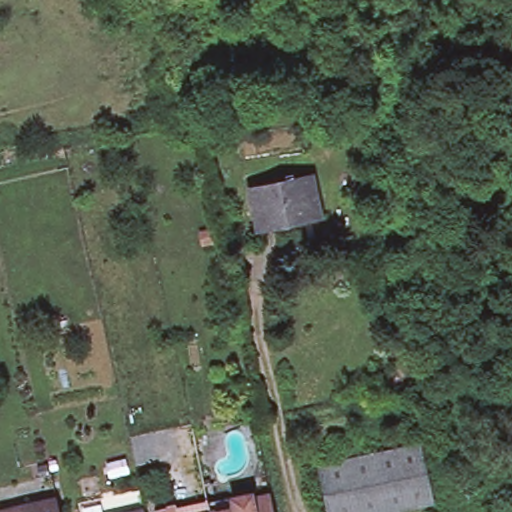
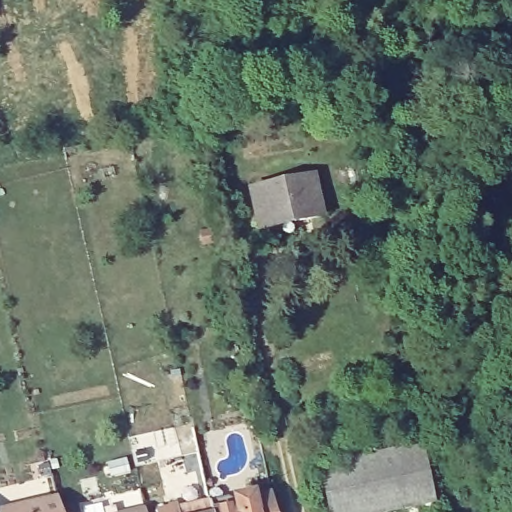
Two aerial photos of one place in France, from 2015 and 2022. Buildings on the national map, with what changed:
unchanged [(300,223),(260,232),(251,191),(248,175),(287,167),(310,163),(313,178),(322,218),(300,223)]
unchanged [(170,434),(176,457),(157,462),(152,438),(170,434)]
unchanged [(430,501),(378,512),(358,512),(345,457),(417,441),(430,501)]
unchanged [(358,512),(331,512),(320,462),(345,457),(358,512)]
unchanged [(20,503),(55,495),(59,512),(0,512),(0,508),(20,503)]
unchanged [(239,502),(250,499),(256,503),(273,499),(276,512),(237,512),(235,506),(239,502)]
unchanged [(211,512),(188,512),(210,506),(211,512)]
unchanged [(144,512),(133,512),(143,509),(144,512)]

